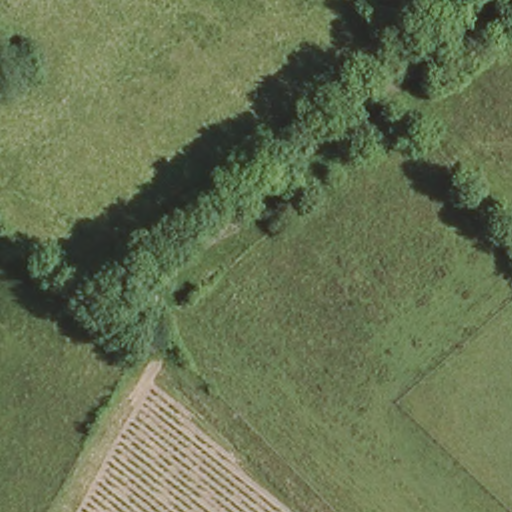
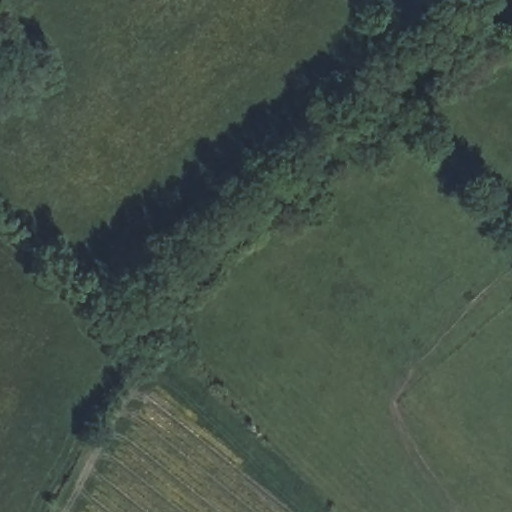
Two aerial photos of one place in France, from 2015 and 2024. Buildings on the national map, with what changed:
[]

